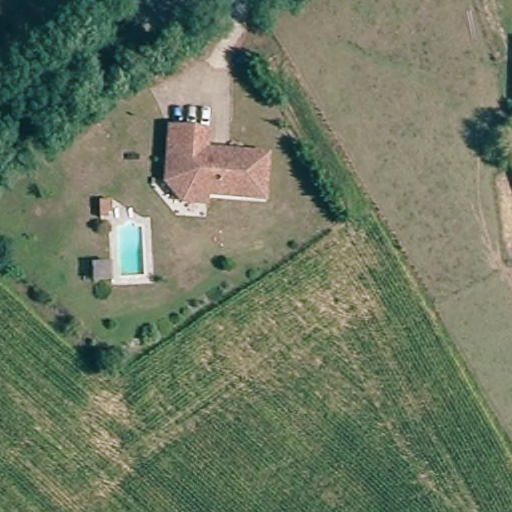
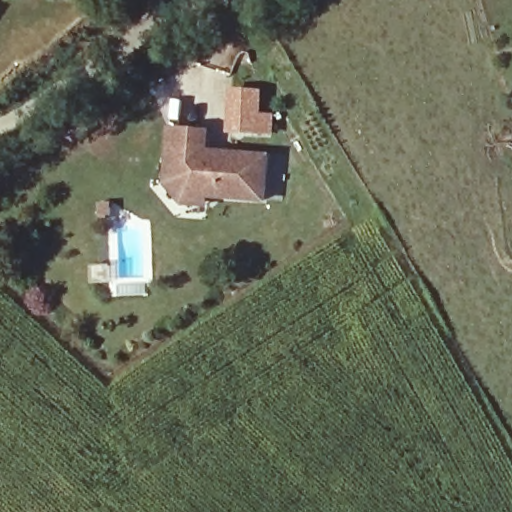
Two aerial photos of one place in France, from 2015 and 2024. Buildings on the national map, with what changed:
new [(226,85),(262,89),(261,113),(273,114),(271,135),(225,133),(226,118),(223,117),(226,85)]
unchanged [(187,199),(169,179),(171,155),(172,145),(173,124),(203,126),(210,127),(209,147),(217,156),(233,158),(233,149),(270,152),(267,195),(211,190),(206,195),(205,200),(187,199)]

